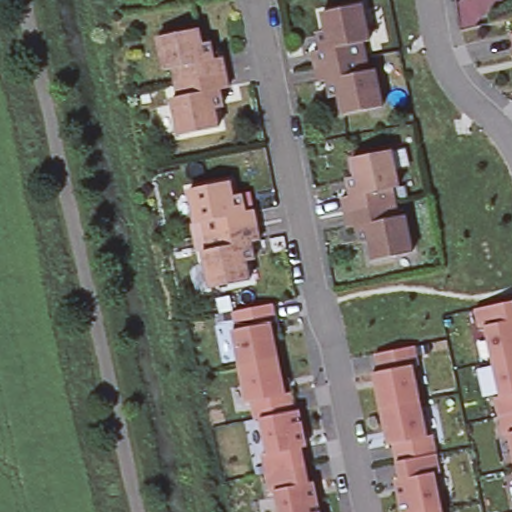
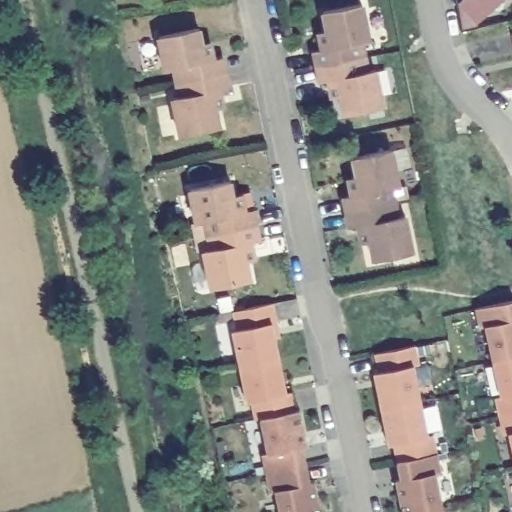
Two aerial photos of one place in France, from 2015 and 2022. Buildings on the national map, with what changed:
unchanged [(489,8),(491,10),(477,21),(461,3),(465,0),(498,0),(489,8)]
unchanged [(326,36),(323,16),(361,9),(369,46),(363,47),(366,61),(316,71),(313,56),(321,54),(318,38),(326,36)]
unchanged [(210,47),(212,54),(213,63),(222,62),(226,77),(176,87),(173,72),(165,74),(158,41),(198,33),(202,49),(210,47)]
unchanged [(328,85),(319,86),(316,71),(366,61),(368,75),(375,74),(383,111),(344,119),(339,100),(331,102),(328,85)]
unchanged [(179,140),(172,104),(179,102),(176,87),(226,77),(228,92),(220,94),(223,111),(215,112),(219,132),(179,140)]
unchanged [(361,181),(357,162),(396,154),(404,191),(398,194),(400,207),(351,217),(348,202),(356,200),(353,183),(361,181)]
unchanged [(233,211),(241,209),(243,217),(245,226),(253,224),(256,240),(207,249),(204,235),(196,237),(189,204),(230,196),(233,211)]
unchanged [(362,231),(354,232),(351,217),(400,207),(403,221),(409,220),(418,257),(378,265),(374,245),(366,247),(362,231)]
unchanged [(251,256),(254,273),(246,275),(250,294),(211,302),(203,265),(210,264),(207,249),(256,240),(259,255),(251,256)]
unchanged [(499,415),(497,402),(496,396),(501,395),(493,361),(489,347),(485,326),(479,327),(476,308),(512,301),(512,413),(499,415)]
unchanged [(273,303),(276,322),(271,323),(279,358),(239,366),(231,330),(236,329),(233,311),(273,303)]
unchanged [(419,364),(414,365),(418,391),(420,400),(381,408),(379,399),(374,372),(378,371),(374,353),(414,345),(419,364)]
unchanged [(279,358),(286,393),(291,392),(294,410),(260,418),(256,419),(251,401),(247,402),(239,366),(279,358)]
unchanged [(420,400),(428,435),(433,434),(434,443),(437,453),(397,461),(394,451),(393,443),(388,444),(381,408),(420,400)]
unchanged [(266,473),(263,453),(268,452),(260,418),(294,410),(299,410),(307,446),(302,447),(306,465),(266,473)]
unchanged [(512,413),(512,448),(509,433),(504,434),(499,415),(512,413)]
unchanged [(396,480),(401,479),(397,461),(437,453),(441,472),(436,473),(441,498),(443,508),(425,512),(402,512),(401,506),(396,480)]
unchanged [(270,492),(266,473),(306,465),(309,482),(314,481),(320,512),(279,512),(275,491),(270,492)]
unchanged [(443,512),(425,512),(443,508),(443,512)]

